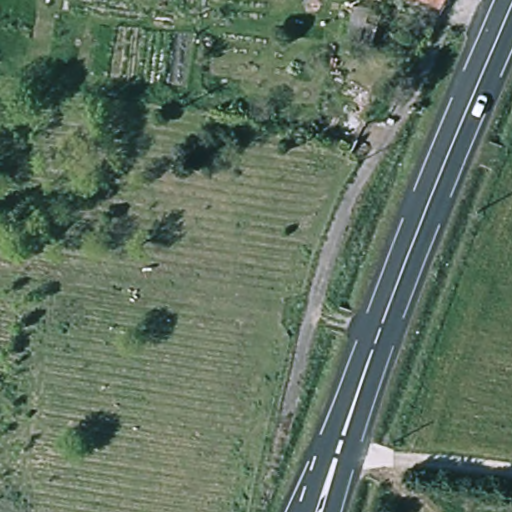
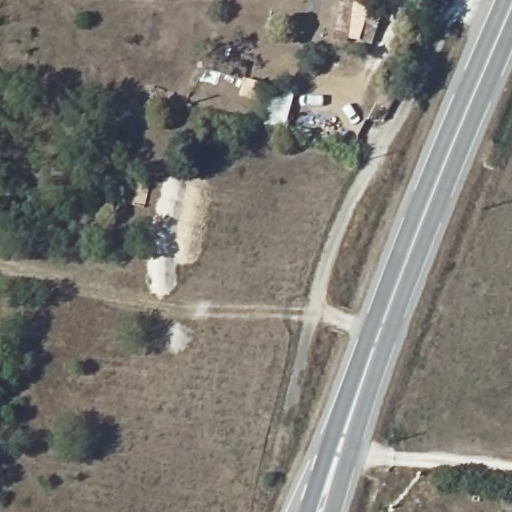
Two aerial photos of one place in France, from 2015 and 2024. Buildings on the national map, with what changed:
unchanged [(447,10),(424,0),(452,0),(447,10)]
unchanged [(368,5),(367,9),(381,13),(366,41),(344,34),(350,1),(368,5)]

